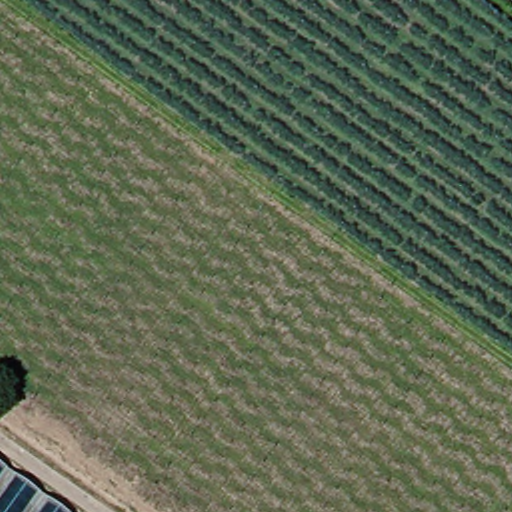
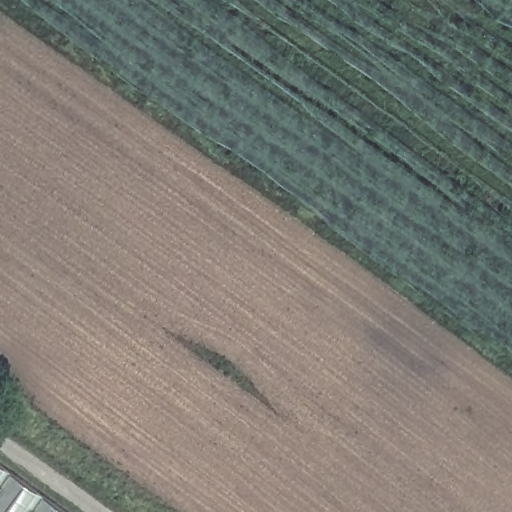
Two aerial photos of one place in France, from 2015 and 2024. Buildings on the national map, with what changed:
unchanged [(0,512),(0,460),(72,512),(0,512)]

